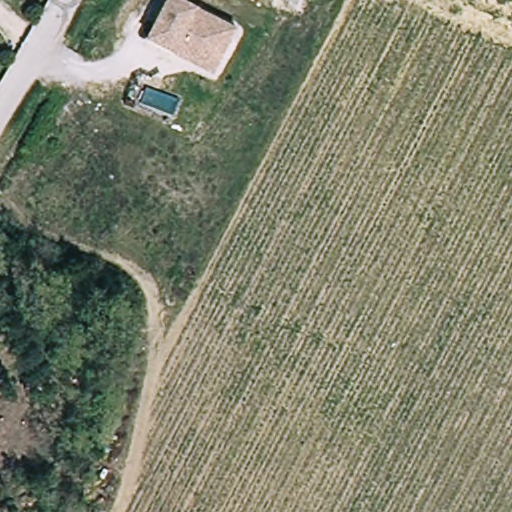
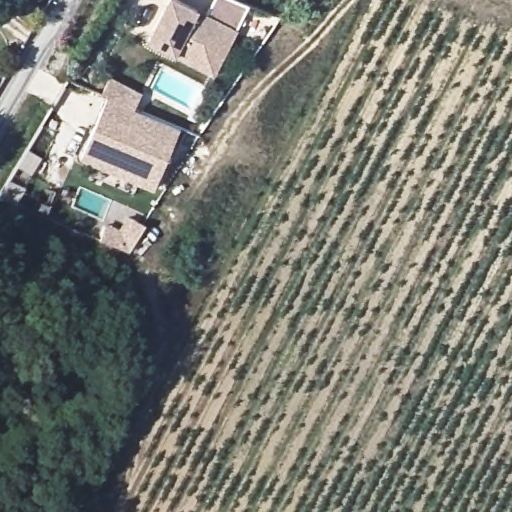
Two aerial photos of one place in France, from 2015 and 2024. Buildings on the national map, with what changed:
unchanged [(144,42),(170,0),(176,0),(236,30),(213,77),(144,42)]
new [(80,160),(105,98),(99,95),(109,77),(143,92),(133,111),(180,129),(153,191),(80,160)]

